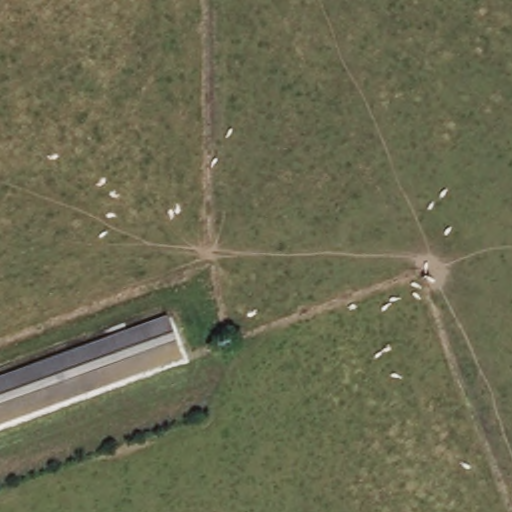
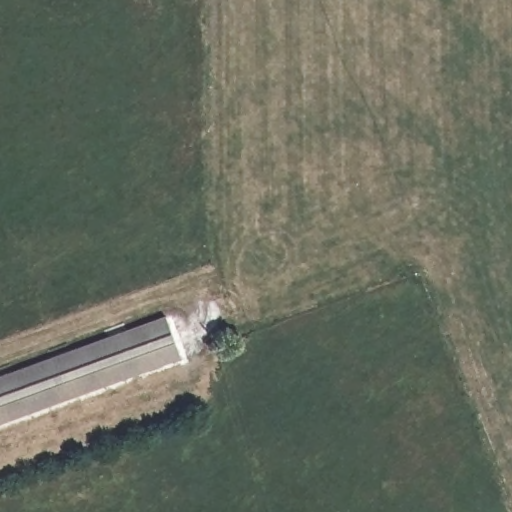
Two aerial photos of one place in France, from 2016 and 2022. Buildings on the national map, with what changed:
unchanged [(0,425),(0,376),(163,311),(179,355),(0,425)]

